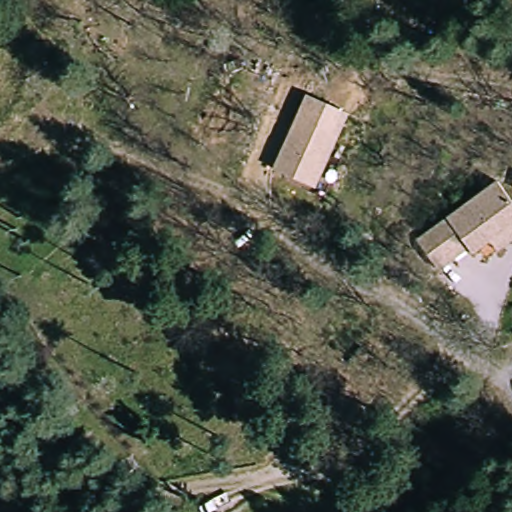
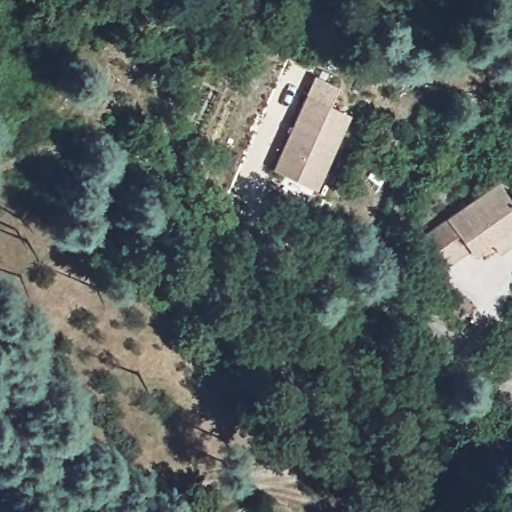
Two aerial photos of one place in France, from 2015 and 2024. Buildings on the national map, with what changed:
unchanged [(328,0),(329,7),(341,7),(342,33),(316,35),(314,0),(328,0)]
unchanged [(274,171),(309,98),(351,118),(315,191),(274,171)]
unchanged [(490,241),(472,253),(467,247),(437,267),(416,237),(499,182),(512,202),(512,242),(497,251),(490,241)]

